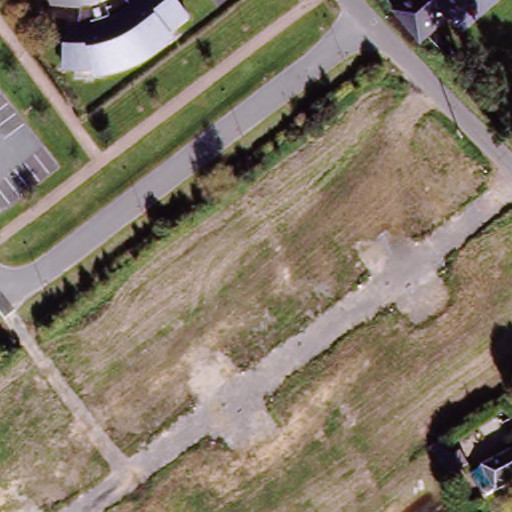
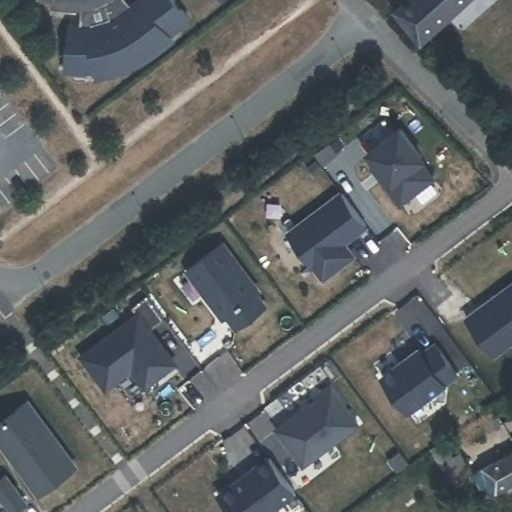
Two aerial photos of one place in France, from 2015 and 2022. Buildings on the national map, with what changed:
unchanged [(74,6),(49,8),(50,0),(111,0),(105,4),(74,6)]
unchanged [(111,0),(127,0),(131,5),(138,0),(174,0),(191,21),(174,39),(177,45),(140,73),(100,81),(92,73),(67,73),(68,30),(78,31),(74,6),(105,4),(111,0)]
unchanged [(473,0),(425,39),(397,6),(404,0),(473,0)]
new [(365,150),(398,126),(420,155),(417,158),(431,176),(397,201),(382,182),(370,165),(374,162),(365,150)]
new [(370,228),(348,244),(356,257),(321,282),(285,234),(340,192),(370,228)]
new [(222,242),(258,290),(255,293),(265,306),(236,328),(226,314),(224,317),(187,269),(222,242)]
new [(462,318),(512,281),(512,345),(493,359),(462,318)]
new [(145,298),(165,322),(154,330),(178,364),(145,388),(132,372),(106,392),(79,356),(137,310),(133,308),(145,298)]
new [(422,353),(435,342),(462,376),(448,386),(446,384),(407,415),(377,376),(416,345),(422,353)]
new [(331,387),(357,421),(306,459),(299,458),(276,428),(331,387)]
new [(80,465),(39,497),(0,447),(0,420),(29,398),(80,465)]
unchanged [(435,451),(447,442),(453,452),(463,447),(472,463),(464,468),(477,493),(465,501),(435,451)]
new [(297,494),(275,512),(229,512),(214,494),(265,454),(297,494)]
unchanged [(477,477),(512,456),(512,490),(491,502),(477,477)]

